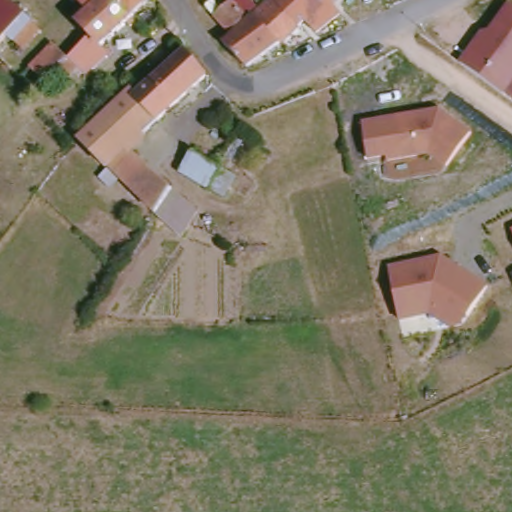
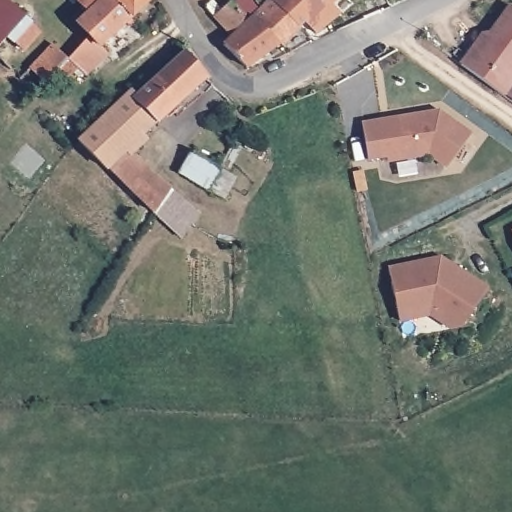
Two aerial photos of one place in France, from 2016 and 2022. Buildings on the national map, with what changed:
unchanged [(5,34),(0,39),(0,0),(7,0),(22,16),(37,31),(20,49),(5,34)]
unchanged [(89,13),(102,0),(118,0),(134,18),(102,47),(110,55),(86,76),(69,59),(92,36),(79,22),(89,13)]
unchanged [(77,0),(102,0),(89,13),(77,0)]
unchanged [(118,0),(153,0),(134,18),(118,0)]
unchanged [(230,0),(232,1),(233,0),(246,0),(252,7),(243,15),(245,16),(226,34),(210,16),(227,0),(230,0)]
unchanged [(311,30),(302,20),(242,68),(220,43),(228,36),(258,9),(268,0),(303,0),(325,19),(311,30)]
unchanged [(336,10),(325,19),(303,0),(335,0),(330,4),(336,10)]
unchanged [(460,66),(483,33),(492,33),(511,9),(512,9),(512,102),(506,98),(460,66)]
unchanged [(53,44),(69,59),(46,81),(32,65),(53,44)]
unchanged [(152,209),(128,184),(112,166),(108,169),(77,139),(132,92),(136,97),(187,51),(207,77),(131,147),(148,165),(172,189),(196,214),(182,240),(152,209)]
unchanged [(474,126),(452,161),(432,148),(392,156),(390,151),(372,155),(365,120),(384,116),(385,119),(395,117),(394,114),(441,104),(474,126)]
unchanged [(215,198),(188,172),(202,155),(226,178),(215,198)]
unchanged [(385,267),(439,256),(490,289),(458,337),(430,317),(396,323),(385,267)]

